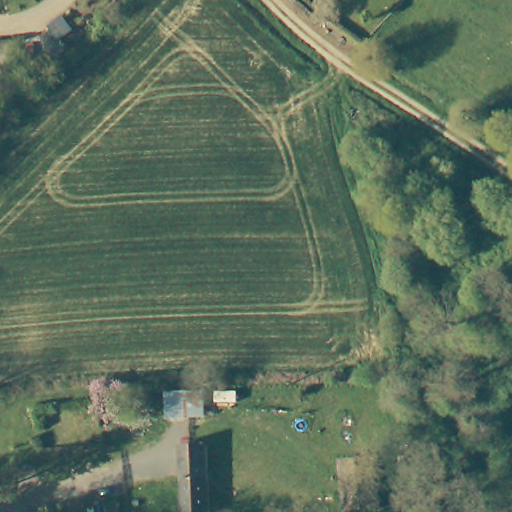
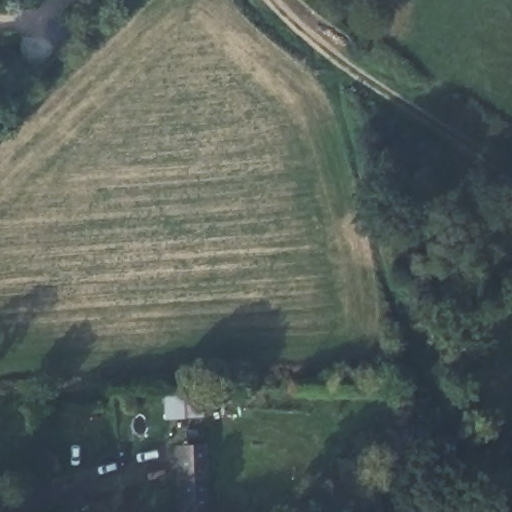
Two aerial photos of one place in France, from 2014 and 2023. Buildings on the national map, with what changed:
unchanged [(171,423),(170,397),(191,396),(192,422),(171,423)]
unchanged [(180,512),(179,445),(204,445),(205,512),(180,512)]
unchanged [(378,511),(340,512),(339,461),(377,461),(378,511)]

